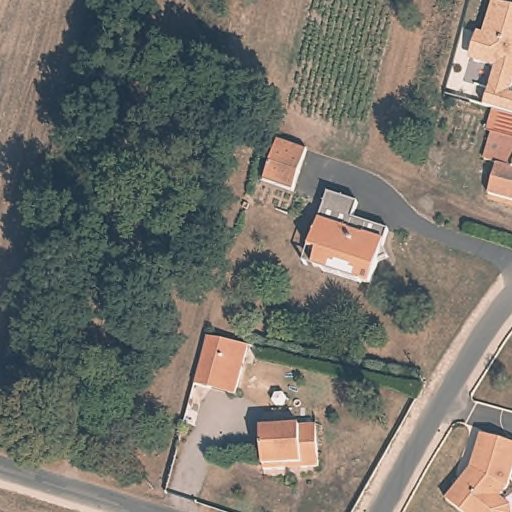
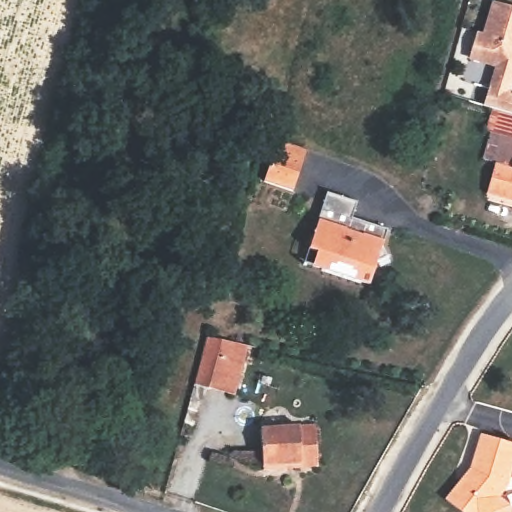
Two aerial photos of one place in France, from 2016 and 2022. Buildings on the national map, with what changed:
unchanged [(493,69),(468,63),(477,31),(484,34),(493,2),(512,8),(512,92),(512,94),(512,116),(504,113),(494,110),(483,106),(493,69)]
unchanged [(489,133),(487,132),(494,110),(504,113),(512,116),(512,169),(506,167),(497,164),(482,158),(489,133)]
unchanged [(315,142),(300,191),(269,180),(284,131),(315,142)]
unchanged [(497,164),(506,167),(512,169),(512,205),(490,199),(497,164)]
unchanged [(354,202),(349,218),(387,231),(379,250),(387,258),(374,264),(369,284),(316,266),(321,252),(310,247),(329,195),(354,202)]
unchanged [(234,391),(208,384),(197,381),(208,335),(220,338),(243,343),(234,391)]
unchanged [(305,462),(305,459),(287,460),(287,465),(266,466),(262,425),(314,419),(320,460),(305,462)]
unchanged [(512,483),(510,489),(501,497),(511,508),(510,512),(465,512),(447,493),(462,478),(469,478),(479,469),(476,465),(490,433),(512,443),(512,483)]

